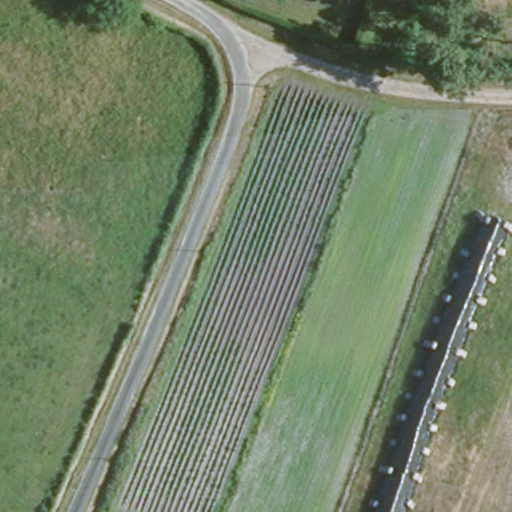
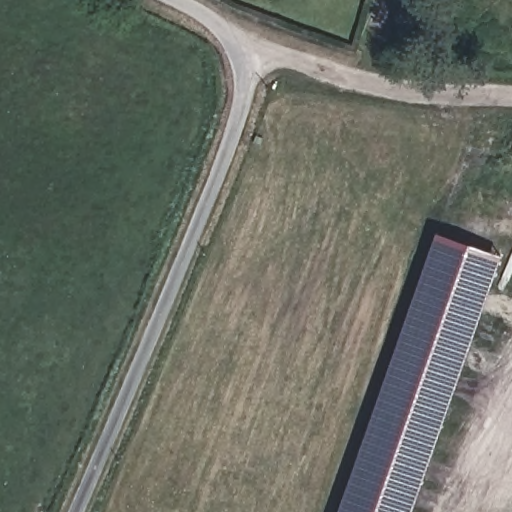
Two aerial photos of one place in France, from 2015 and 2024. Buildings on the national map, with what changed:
new [(500,257),(411,512),(341,512),(438,237),(500,257)]

